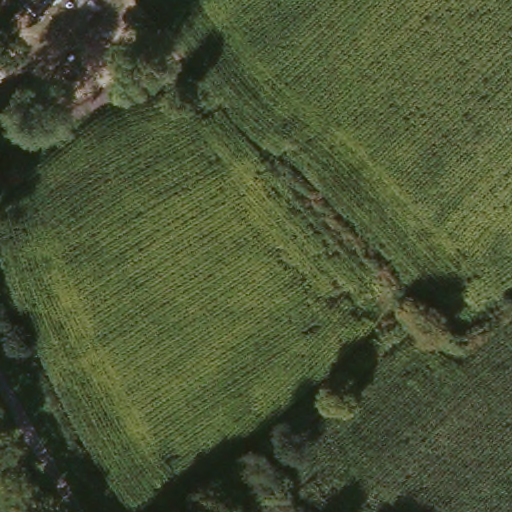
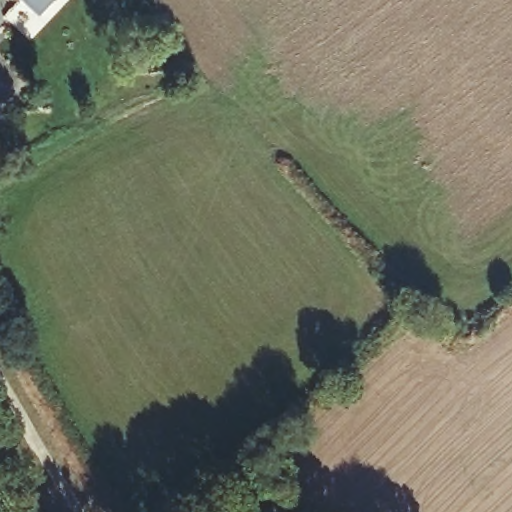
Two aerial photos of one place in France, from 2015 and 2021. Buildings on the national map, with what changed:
new [(20,0),(56,0),(39,18),(20,0)]
demolished [(42,0),(58,0),(52,7),(42,0)]

